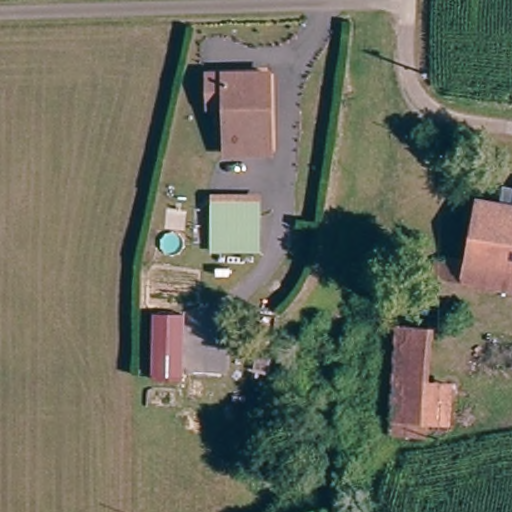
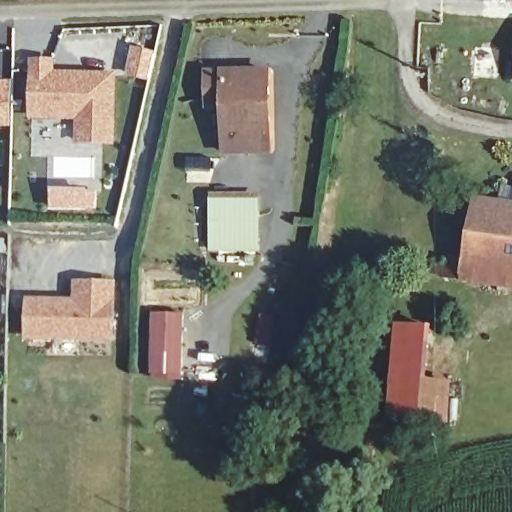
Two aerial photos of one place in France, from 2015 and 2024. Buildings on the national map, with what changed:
new [(57,60),(57,71),(118,72),(117,145),(76,145),(76,120),(30,120),(30,60),(57,60)]
unchanged [(230,152),(229,134),(228,105),(209,104),(207,72),(270,72),(270,89),(271,116),(271,131),(271,149),(230,152)]
unchanged [(507,209),(509,197),(512,198),(512,209),(507,209)]
unchanged [(249,255),(204,255),(203,206),(247,201),(249,255)]
unchanged [(437,256),(473,261),(483,206),(507,209),(512,209),(512,287),(434,278),(437,256)]
new [(74,298),(74,281),(117,281),(116,342),(27,341),(27,298),(74,298)]
unchanged [(144,376),(145,315),(179,314),(178,376),(144,376)]
unchanged [(435,327),(432,380),(453,383),(450,426),(432,422),(428,440),(387,437),(387,417),(394,323),(435,327)]

